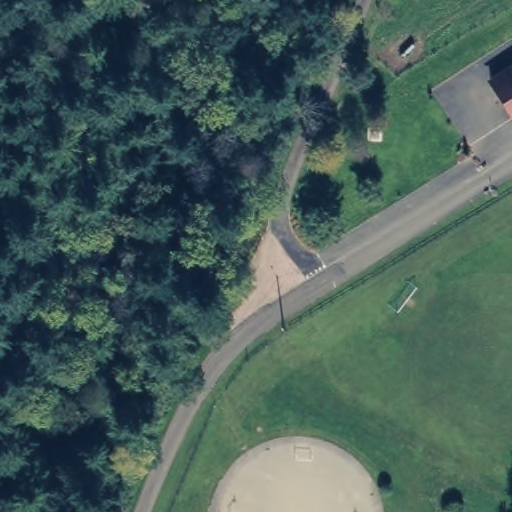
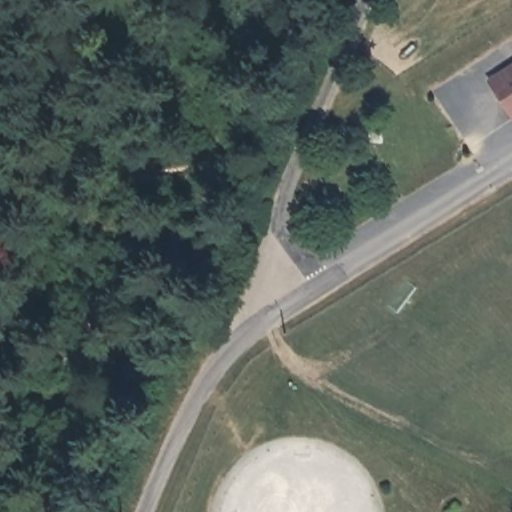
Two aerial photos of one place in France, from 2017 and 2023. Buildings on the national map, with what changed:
unchanged [(512,67),(512,117),(489,81),(512,67)]

